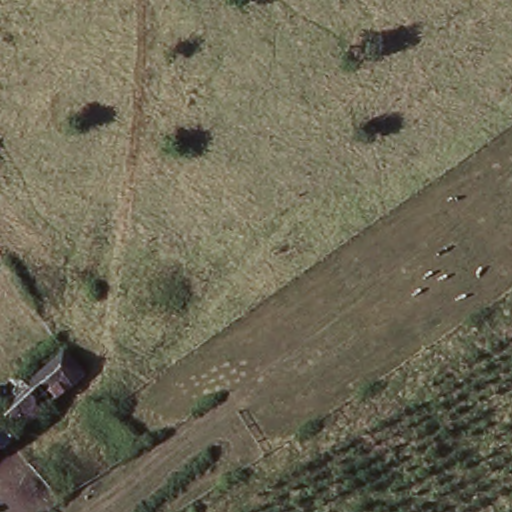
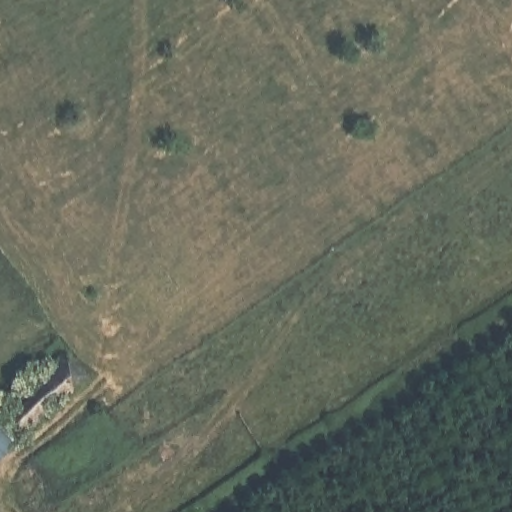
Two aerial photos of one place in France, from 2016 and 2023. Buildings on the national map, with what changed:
unchanged [(0,426),(0,415),(8,408),(0,398),(0,393),(17,378),(28,392),(68,359),(88,383),(13,445),(0,426)]
unchanged [(13,445),(0,455),(0,426),(13,445)]

